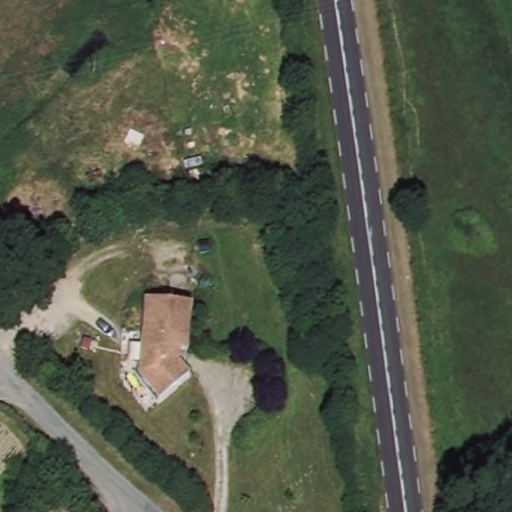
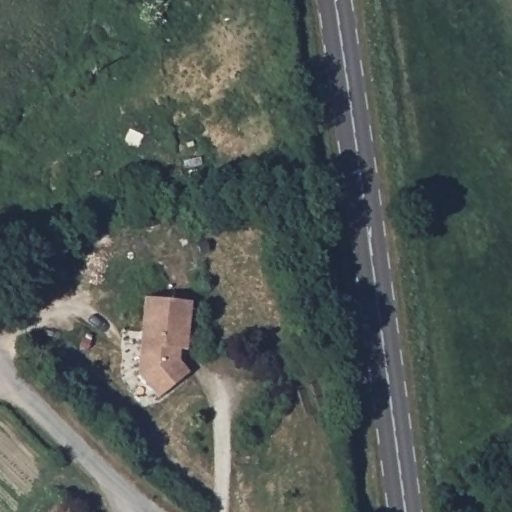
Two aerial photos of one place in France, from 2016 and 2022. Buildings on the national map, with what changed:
unchanged [(186,354),(178,353),(177,364),(190,384),(158,403),(139,373),(146,299),(191,303),(186,354)]

